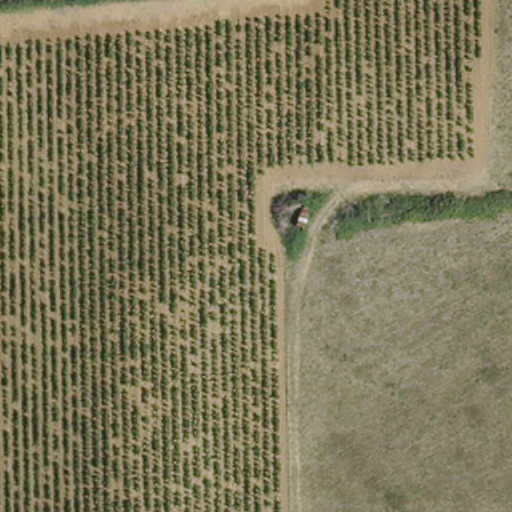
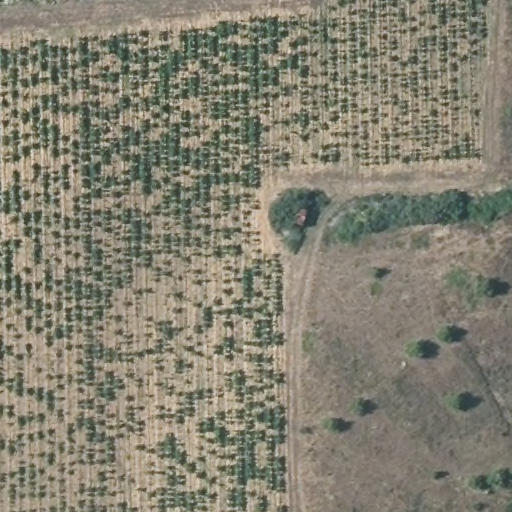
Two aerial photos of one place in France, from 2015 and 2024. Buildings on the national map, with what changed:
unchanged [(317,210),(312,235),(290,232),(300,206),(317,210)]

